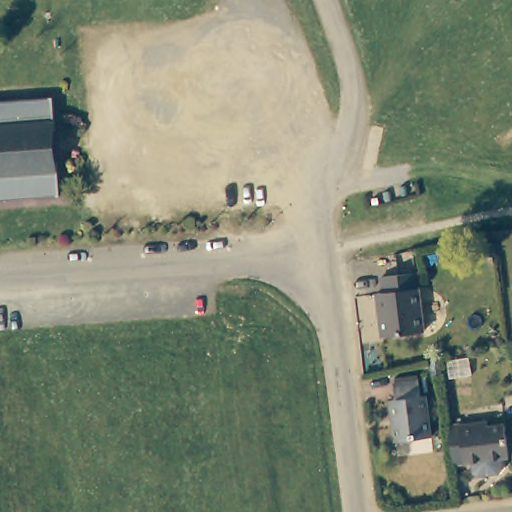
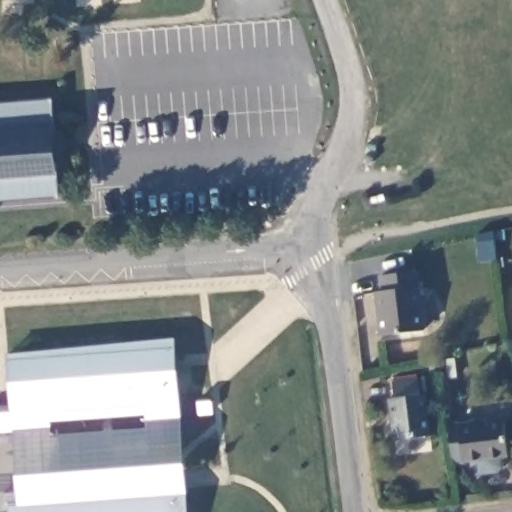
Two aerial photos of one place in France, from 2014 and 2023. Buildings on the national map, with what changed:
unchanged [(20,97),(55,94),(57,121),(50,122),(54,166),(61,166),(63,193),(28,195),(0,197),(0,99),(20,97)]
unchanged [(376,332),(372,299),(378,298),(377,283),(412,279),(417,327),(376,332)]
new [(8,512),(7,504),(19,504),(14,432),(0,433),(0,406),(10,406),(6,353),(176,337),(190,512),(8,512)]
unchanged [(395,441),(390,399),(395,399),(393,383),(418,380),(420,395),(425,395),(430,436),(395,441)]
unchanged [(488,419),(488,424),(503,422),(507,455),(463,460),(452,462),(447,424),(488,419)]
new [(19,500),(10,501),(10,507),(0,508),(0,492),(19,491),(19,500)]

